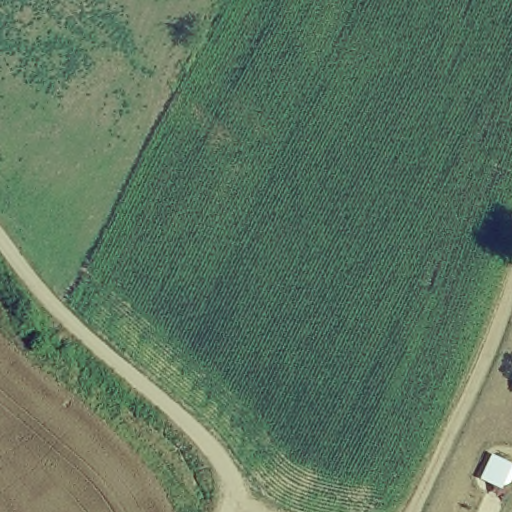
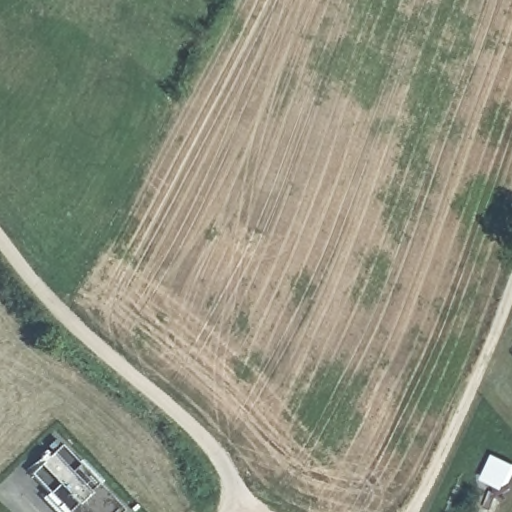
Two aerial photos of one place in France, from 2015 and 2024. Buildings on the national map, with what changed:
new [(123,509),(120,512),(66,512),(65,511),(65,512),(60,512),(43,495),(47,492),(31,475),(60,445),(123,509)]
unchanged [(512,489),(511,490),(482,473),(497,450),(512,461),(512,489)]

